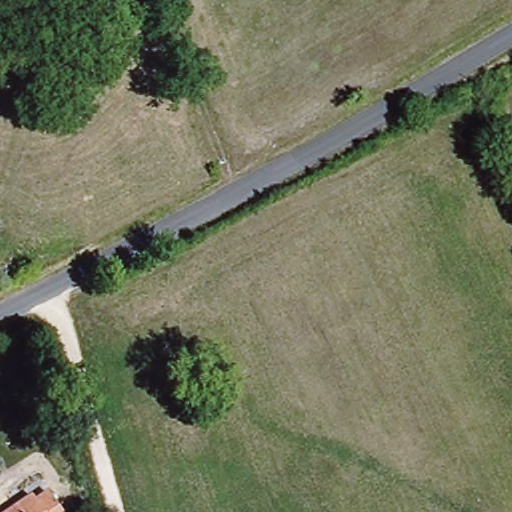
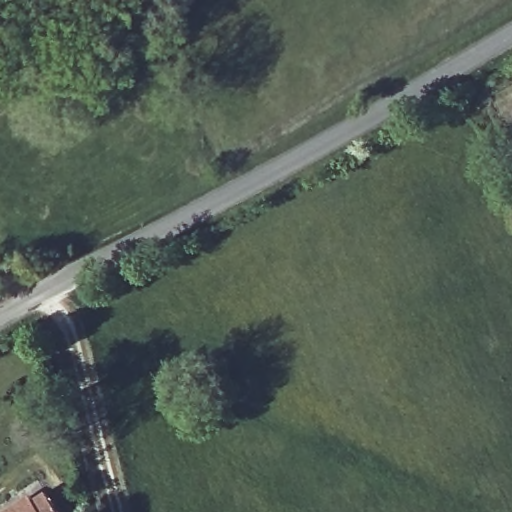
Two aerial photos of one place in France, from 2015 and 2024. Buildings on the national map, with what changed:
unchanged [(62,512),(13,512),(40,495),(44,502),(52,496),(62,512)]

